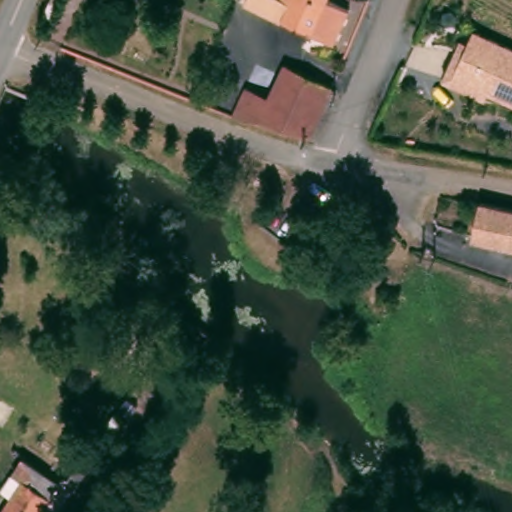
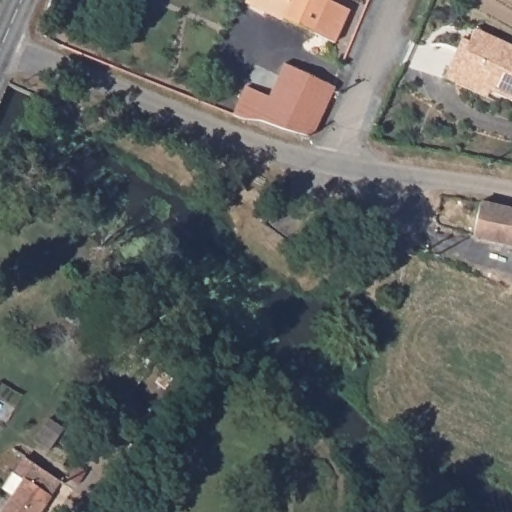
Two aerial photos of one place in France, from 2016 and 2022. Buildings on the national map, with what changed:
unchanged [(327,1),(349,9),(339,42),(287,25),(250,12),(253,0),(327,0),(327,1)]
unchanged [(482,95),(440,75),(459,34),(465,36),(471,25),(512,44),(512,99),(486,86),(482,95)]
unchanged [(240,109),(251,81),(275,90),(289,63),(335,84),(312,134),(301,131),(283,125),(266,117),(263,116),(251,114),(240,109)]
unchanged [(478,199),(512,206),(512,242),(472,234),(478,199)]
unchanged [(0,512),(0,502),(30,460),(54,477),(29,512),(0,512)]

